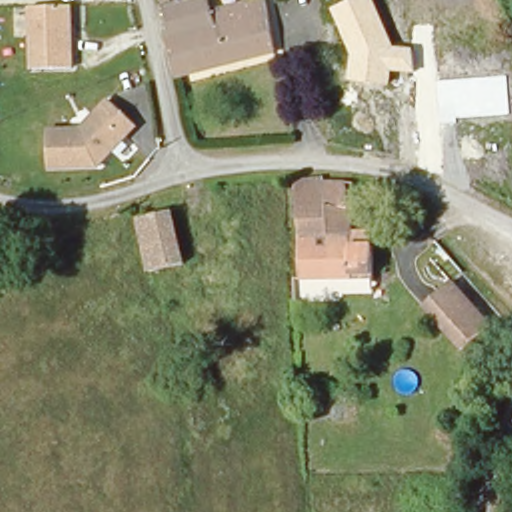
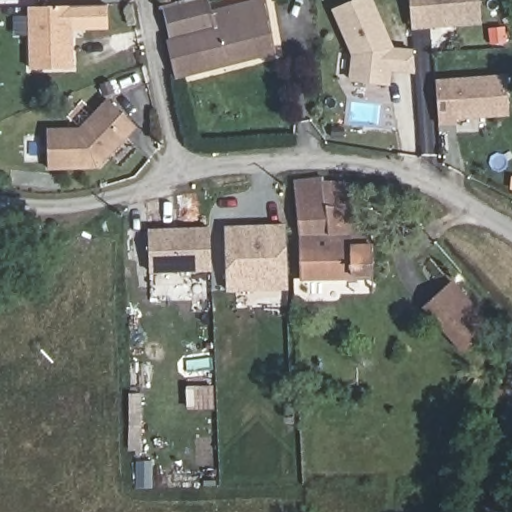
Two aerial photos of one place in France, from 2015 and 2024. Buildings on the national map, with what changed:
unchanged [(173,0),(207,0),(211,13),(261,3),(273,56),(179,75),(159,3),(173,0)]
unchanged [(415,47),(415,72),(390,71),(390,84),(352,79),(354,56),(332,9),(356,0),(373,0),(392,44),(415,47)]
new [(411,30),(409,0),(478,0),(480,24),(411,30)]
unchanged [(70,8),(74,70),(34,72),(30,10),(70,8)]
new [(457,125),(440,126),(436,79),(505,74),(508,116),(456,120),(457,125)]
unchanged [(48,132),(81,130),(108,99),(137,123),(100,166),(51,170),(48,132)]
unchanged [(348,235),(348,252),(367,252),(370,278),(299,282),(296,186),(326,183),(345,187),(346,207),(348,235)]
new [(288,226),(289,287),(228,290),(225,228),(288,226)]
new [(210,227),(211,272),(149,274),(146,228),(210,227)]
demolished [(139,244),(173,236),(179,265),(145,273),(139,244)]
unchanged [(492,327),(467,351),(424,307),(435,297),(447,284),(460,295),(492,327)]

